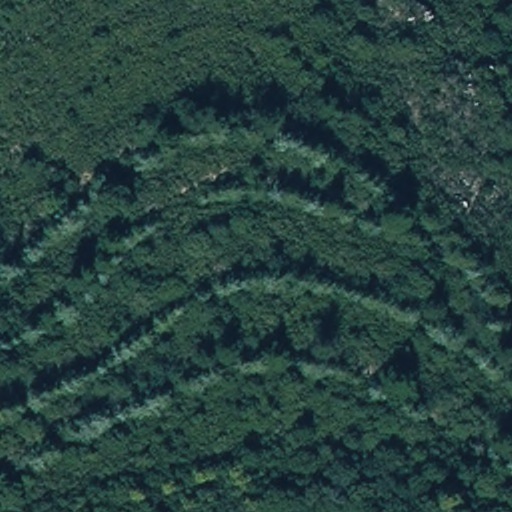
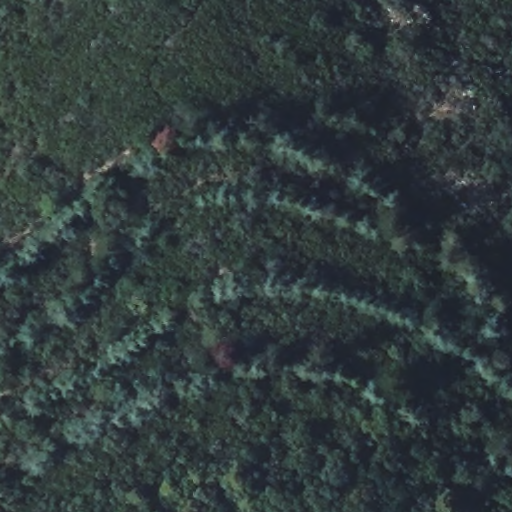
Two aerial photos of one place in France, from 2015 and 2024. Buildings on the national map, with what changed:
[]

